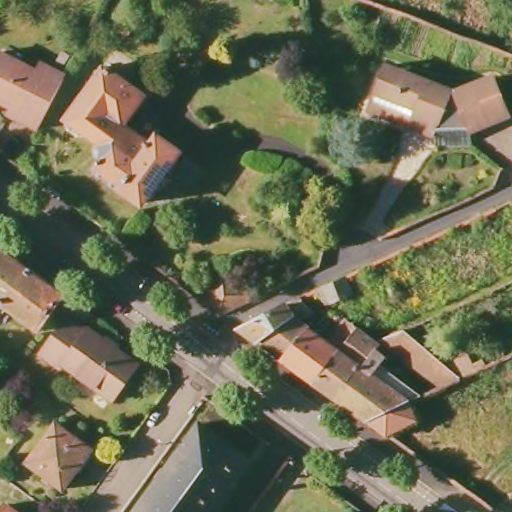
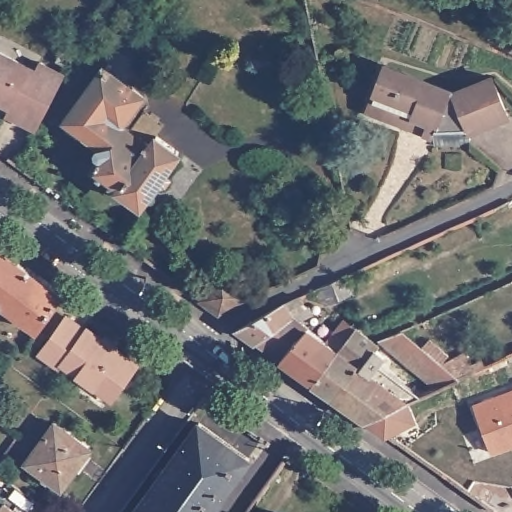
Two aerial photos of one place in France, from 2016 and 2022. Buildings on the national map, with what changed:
unchanged [(36,135),(7,120),(10,111),(0,107),(0,62),(32,77),(36,69),(63,81),(36,135)]
unchanged [(123,129),(155,150),(162,141),(181,156),(141,210),(121,195),(120,196),(92,175),(101,162),(100,152),(84,141),(77,143),(67,135),(63,127),(102,70),(143,99),(138,107),(123,129)]
unchanged [(505,114),(468,129),(465,124),(448,131),(443,130),(440,139),(372,116),(388,72),(452,92),(491,77),(505,114)]
unchanged [(60,290),(32,327),(0,304),(0,246),(60,290)]
unchanged [(213,315),(195,301),(217,270),(252,296),(213,315)]
unchanged [(348,295),(330,302),(324,286),(341,278),(348,295)]
unchanged [(325,342),(344,320),(355,328),(313,383),(280,360),(258,343),(239,330),(292,301),(296,306),(287,310),(290,315),(307,308),(314,317),(299,323),(308,328),(311,330),(325,342)]
unchanged [(68,316),(135,366),(111,400),(60,364),(58,367),(40,353),(68,316)]
unchanged [(355,328),(376,346),(360,366),(333,397),(313,383),(355,328)]
unchanged [(434,387),(382,338),(399,330),(440,366),(465,355),(474,370),(455,379),(434,387)]
unchanged [(333,397),(360,366),(405,400),(417,420),(387,435),(363,419),(333,397)]
new [(474,400),(512,387),(512,440),(491,447),(474,400)]
unchanged [(55,422),(90,450),(61,490),(26,463),(55,422)]
unchanged [(249,461),(212,512),(135,512),(199,425),(249,461)]
unchanged [(18,512),(0,512),(7,503),(18,512)]

